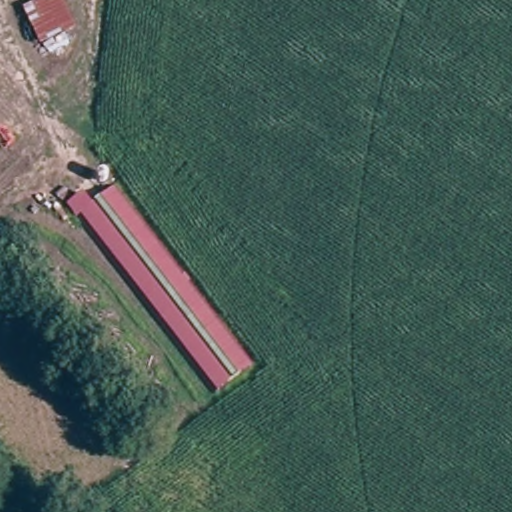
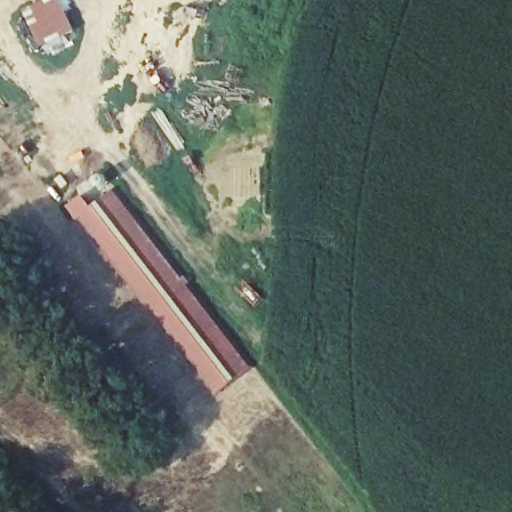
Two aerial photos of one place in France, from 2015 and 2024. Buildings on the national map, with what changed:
unchanged [(40,0),(63,0),(76,30),(41,46),(22,8),(40,0)]
unchanged [(79,191),(88,203),(114,184),(252,361),(215,390),(67,201),(79,191)]

